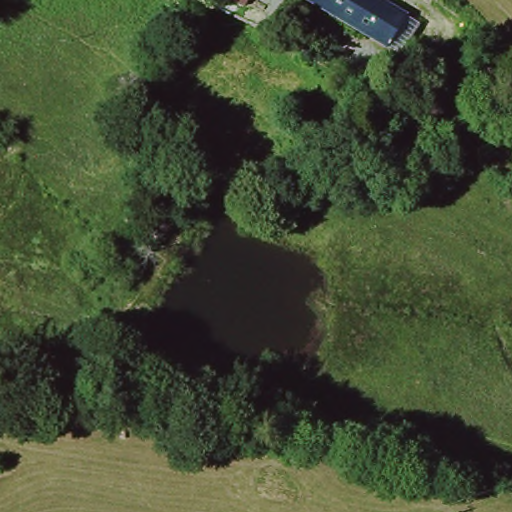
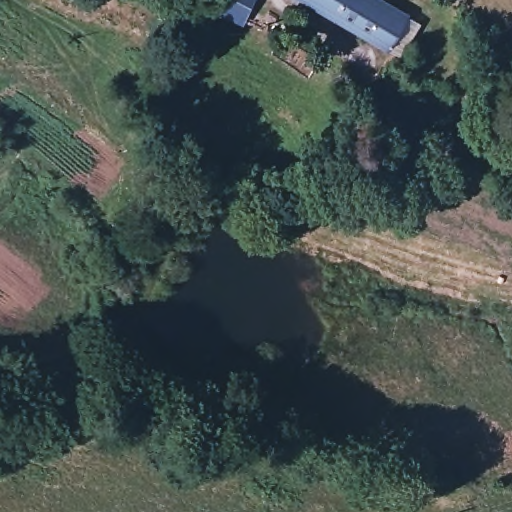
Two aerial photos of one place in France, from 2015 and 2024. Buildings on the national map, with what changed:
unchanged [(216,0),(234,0),(229,9),(216,0)]
unchanged [(384,0),(407,16),(383,53),(303,0),(365,0),(378,8),(384,0)]

